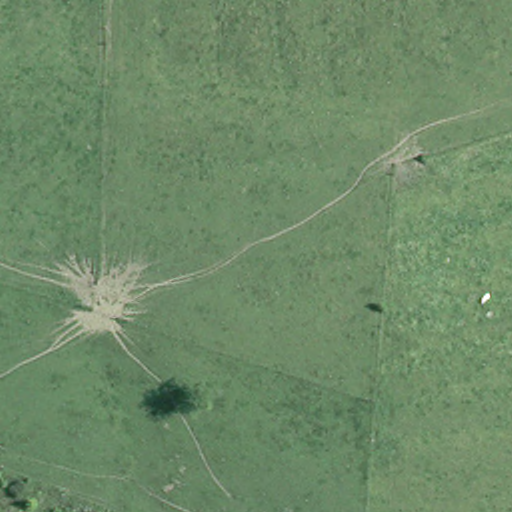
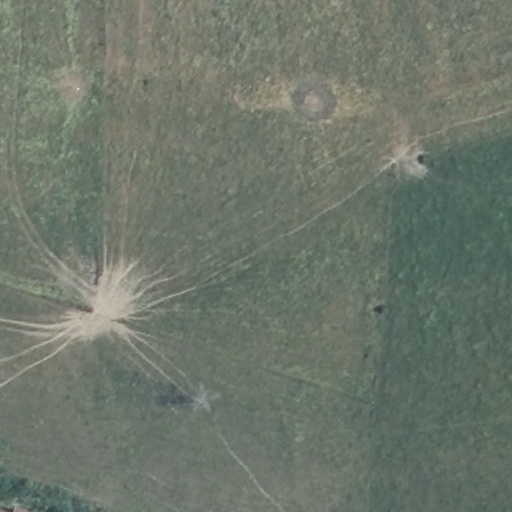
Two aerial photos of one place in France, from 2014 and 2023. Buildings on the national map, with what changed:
unchanged [(14,512),(0,512),(0,507),(14,512)]
unchanged [(19,509),(28,512),(17,512),(19,509)]

